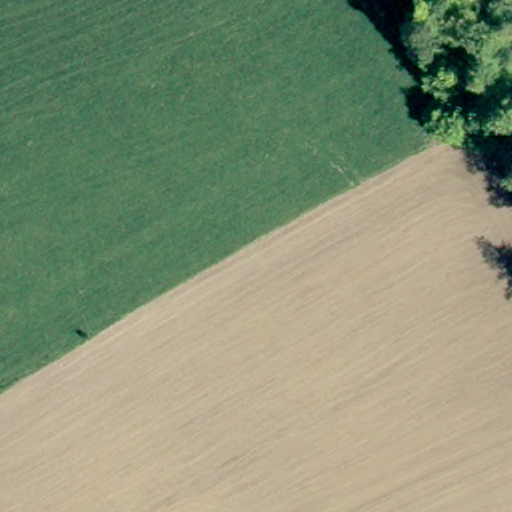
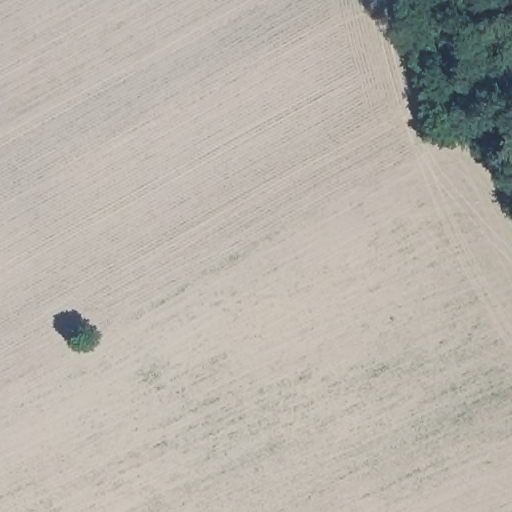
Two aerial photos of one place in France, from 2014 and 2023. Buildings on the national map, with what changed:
[]

